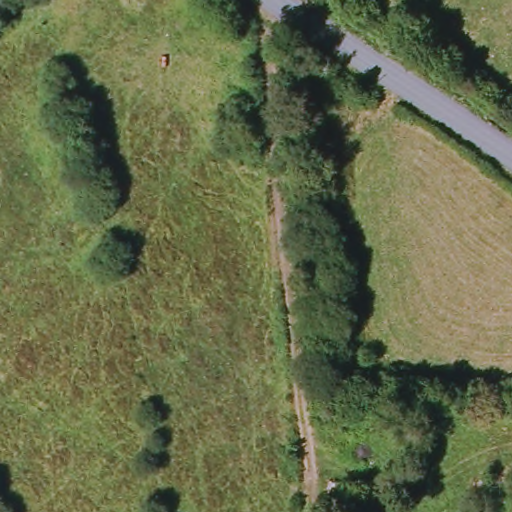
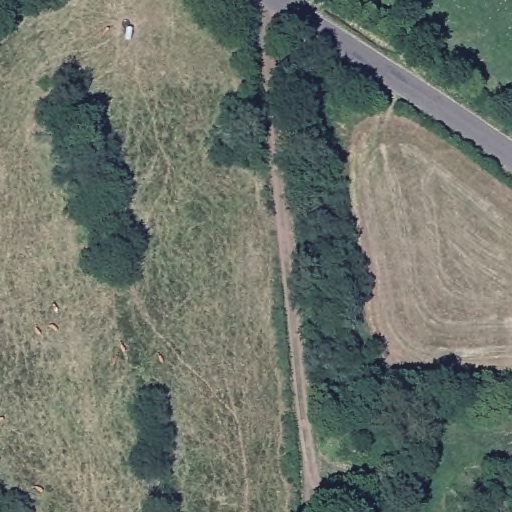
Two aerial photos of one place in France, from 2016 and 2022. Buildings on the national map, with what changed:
[]

